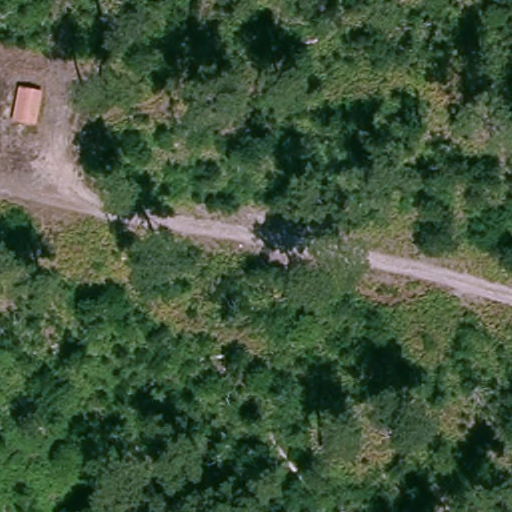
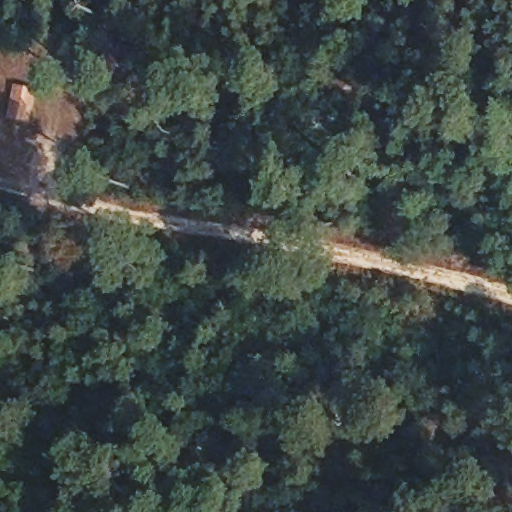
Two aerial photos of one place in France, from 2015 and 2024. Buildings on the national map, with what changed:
unchanged [(40,88),(33,128),(5,121),(12,83),(40,88)]

